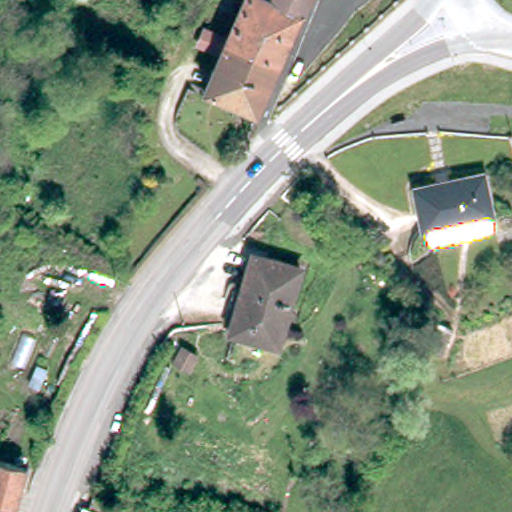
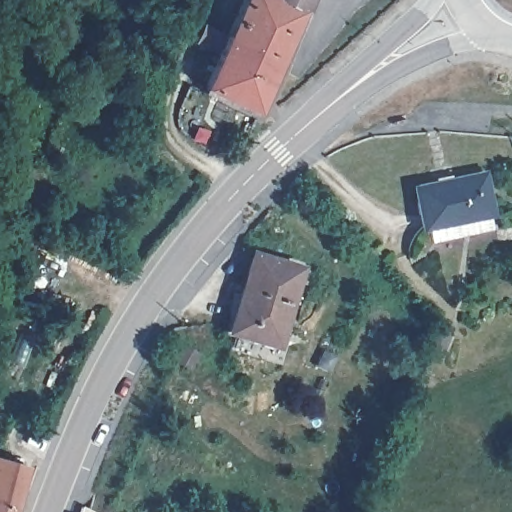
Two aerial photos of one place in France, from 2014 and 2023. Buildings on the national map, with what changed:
unchanged [(273,0),(275,0),(307,14),(286,63),(232,40),(230,39),(245,0),(273,0)]
unchanged [(312,0),(307,14),(275,0),(312,0)]
unchanged [(230,39),(232,40),(286,63),(264,117),(210,95),(225,58),(207,50),(209,46),(204,44),(210,30),(220,35),(230,39)]
unchanged [(427,234),(425,222),(420,224),(410,180),(481,167),(489,207),(484,209),(487,222),(427,234)]
unchanged [(302,275),(264,347),(220,325),(235,296),(239,298),(254,270),(250,268),(259,252),(302,275)]
unchanged [(455,332),(446,359),(436,355),(446,328),(455,332)]
unchanged [(196,347),(210,357),(200,370),(186,360),(196,347)]
unchanged [(19,470),(8,512),(0,512),(0,465),(19,470)]
unchanged [(95,512),(79,512),(82,506),(95,512)]

